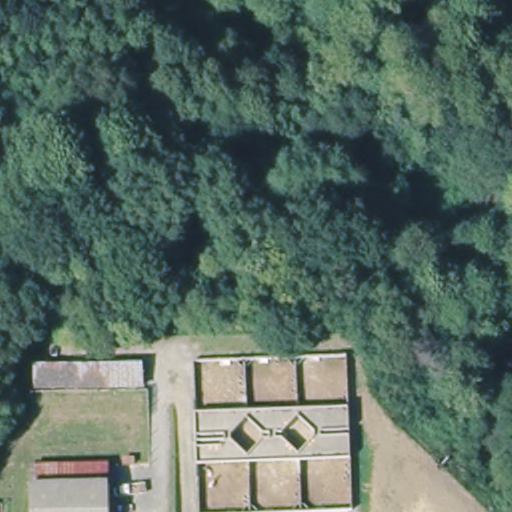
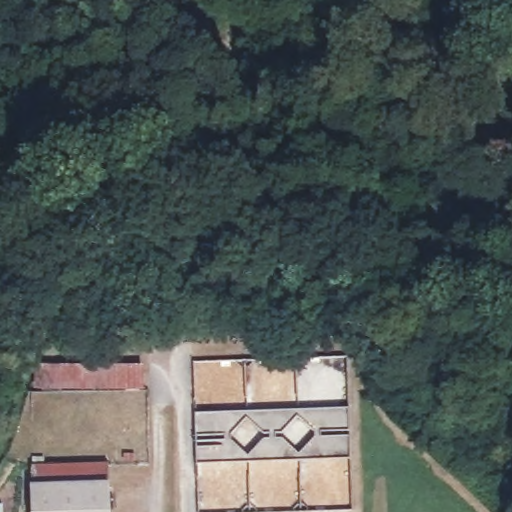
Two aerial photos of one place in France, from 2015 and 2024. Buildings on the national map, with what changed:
unchanged [(348,512),(186,512),(184,359),(350,361),(348,512)]
unchanged [(143,389),(35,391),(33,365),(144,365),(143,389)]
unchanged [(35,495),(35,472),(111,473),(111,496),(35,495)]
unchanged [(111,496),(111,512),(34,512),(35,495),(111,496)]

